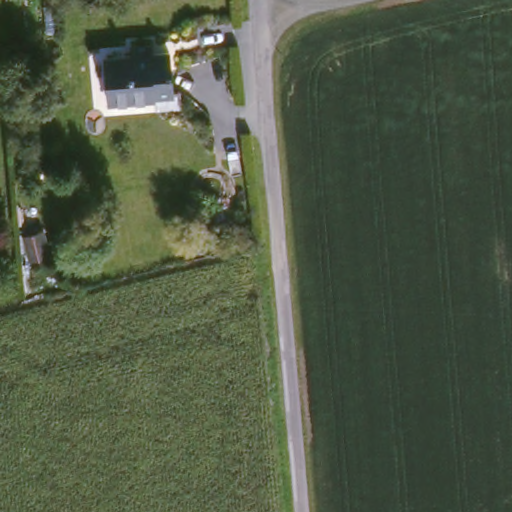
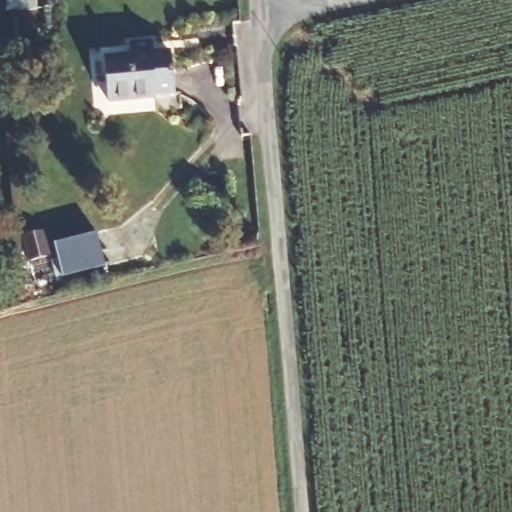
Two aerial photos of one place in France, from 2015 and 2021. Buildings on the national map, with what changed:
unchanged [(153,57),(170,55),(174,99),(155,100),(155,103),(110,106),(105,61),(134,59),(133,48),(152,47),(153,57)]
new [(97,233),(106,266),(64,277),(55,244),(97,233)]

